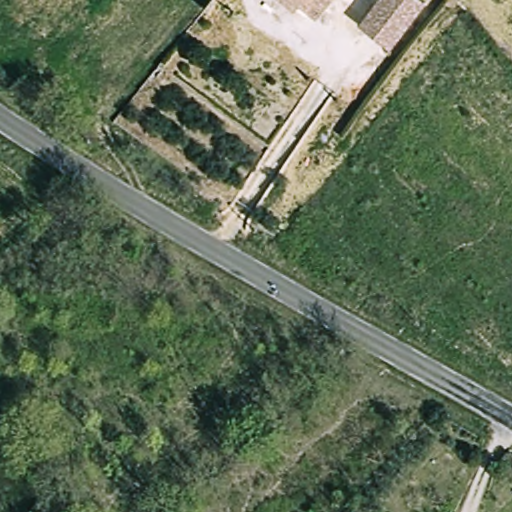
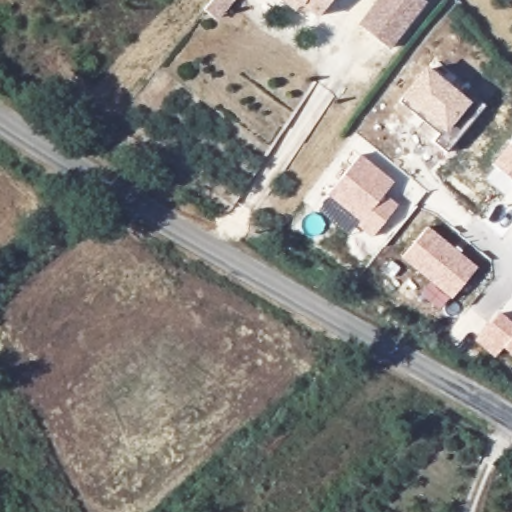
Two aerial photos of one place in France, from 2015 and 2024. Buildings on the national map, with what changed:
unchanged [(327,0),(316,14),(299,0),(327,0)]
unchanged [(425,0),(431,5),(394,52),(359,26),(382,0),(425,0)]
new [(402,97),(400,96),(425,66),(459,92),(463,87),(484,107),(446,152),(433,142),(439,135),(399,101),(402,97)]
new [(508,145),(512,140),(512,180),(492,163),(508,145)]
new [(359,154),(394,182),(384,194),(397,205),(372,238),(356,225),(359,221),(328,195),(359,154)]
new [(477,267),(451,298),(402,257),(427,227),(477,267)]
new [(512,323),(512,356),(502,347),(493,357),(474,341),(498,312),(512,323)]

